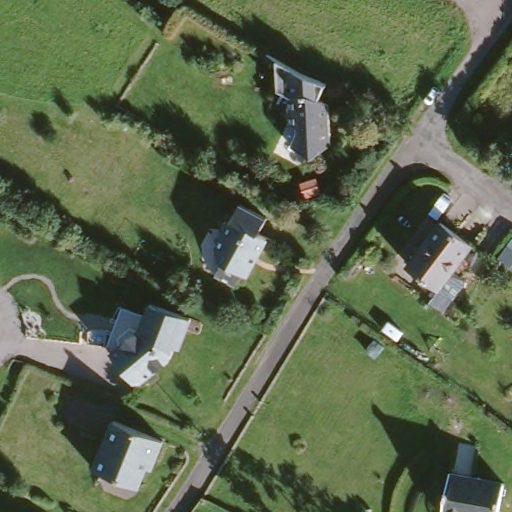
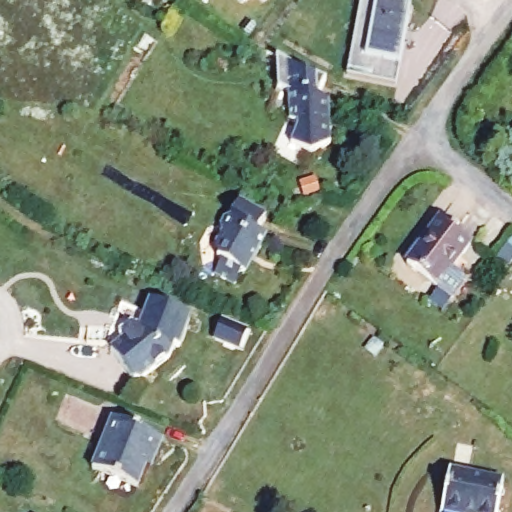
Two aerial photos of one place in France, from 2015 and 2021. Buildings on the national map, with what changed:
new [(243,3),(240,0),(245,0),(243,3)]
new [(263,1),(262,0),(264,0),(263,1)]
new [(359,0),(408,0),(410,1),(400,59),(350,50),(351,47),(359,0)]
unchanged [(290,142),(300,130),(290,119),(288,91),(309,90),(329,103),(329,141),(309,157),(306,154),(290,142)]
unchanged [(221,262),(214,259),(215,247),(222,232),(220,225),(225,216),(233,214),(239,203),(266,217),(258,233),(266,237),(247,274),(241,274),(233,287),(213,276),(221,262)]
unchanged [(433,228),(466,251),(434,295),(402,271),(433,228)]
unchanged [(111,352),(121,344),(120,336),(132,327),(139,328),(150,302),(192,317),(181,349),(176,347),(172,360),(137,386),(111,352)]
unchanged [(111,421),(161,443),(152,461),(147,459),(133,490),(89,471),(111,421)]
unchanged [(497,512),(440,512),(442,495),(445,474),(458,475),(501,480),(497,512)]

